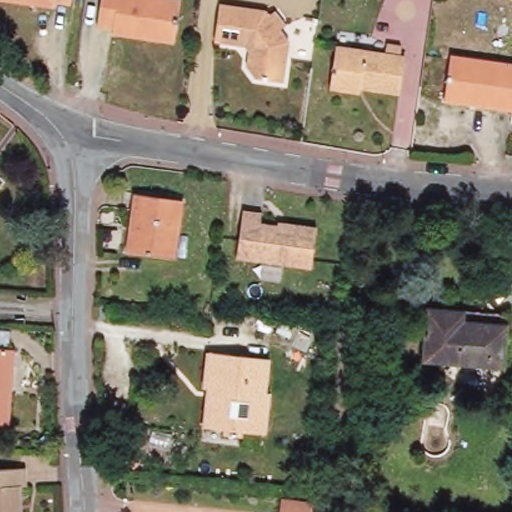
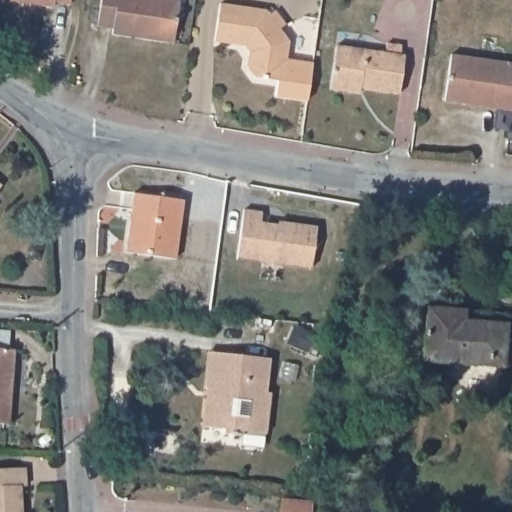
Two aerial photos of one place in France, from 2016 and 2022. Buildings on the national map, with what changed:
unchanged [(67,6),(51,5),(51,10),(0,2),(0,0),(67,0),(67,6)]
unchanged [(176,0),(170,44),(109,35),(110,30),(94,27),(98,0),(173,0),(176,0)]
unchanged [(262,10),(266,15),(272,10),(283,25),(277,30),(287,42),(281,82),(254,80),(246,67),(248,52),(242,45),(212,41),(217,5),(262,10)]
unchanged [(385,54),(386,44),(401,46),(400,56),(403,57),(398,95),(360,90),(359,96),(329,91),(336,46),(385,54)]
unchanged [(512,114),(510,114),(442,104),(449,56),(512,66),(512,114)]
unchanged [(186,207),(170,262),(119,247),(132,192),(186,207)]
unchanged [(242,209),(267,211),(266,222),(291,225),(291,221),(322,225),(318,266),(237,257),(242,209)]
unchanged [(508,311),(507,327),(503,368),(419,360),(424,303),(457,306),(508,311)]
unchanged [(9,420),(0,419),(0,330),(7,330),(7,346),(12,346),(9,420)]
unchanged [(248,358),(268,361),(266,384),(263,398),(268,400),(262,438),(207,430),(211,394),(202,393),(207,353),(248,358)]
unchanged [(24,470),(25,489),(19,489),(20,512),(0,512),(0,470),(24,470)]
unchanged [(307,512),(278,512),(278,502),(307,506),(307,512)]

